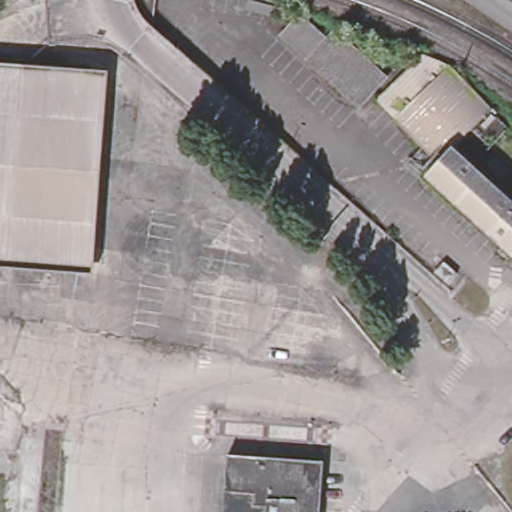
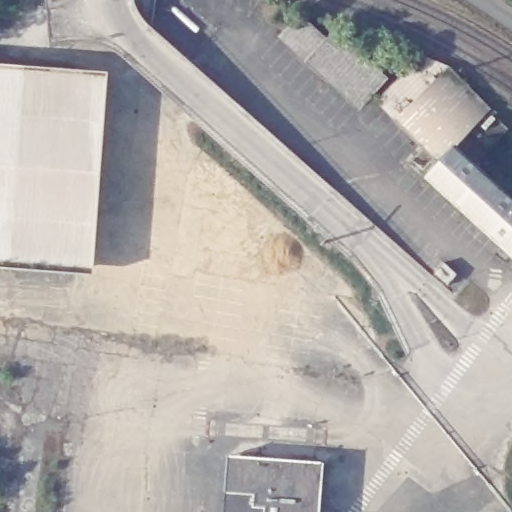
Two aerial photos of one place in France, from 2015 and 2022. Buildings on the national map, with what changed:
unchanged [(338,36),(386,80),(361,106),(286,37),(302,20),(330,45),(338,36)]
unchanged [(410,163),(423,148),(378,102),(423,58),(447,68),(508,130),(475,167),(512,200),(512,256),(410,163)]
unchanged [(0,64),(111,72),(96,275),(0,268),(0,64)]
unchanged [(227,461),(323,469),(320,512),(225,512),(227,461)]

